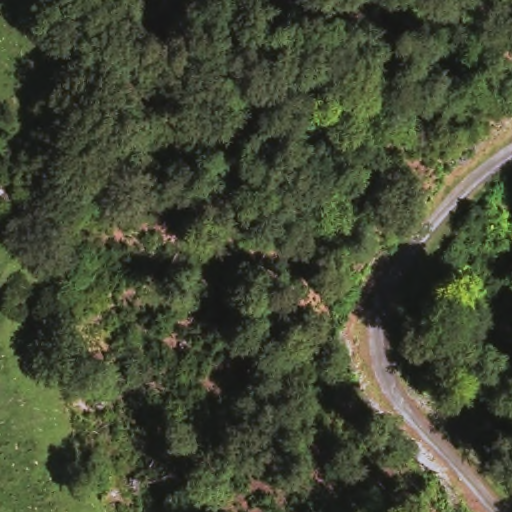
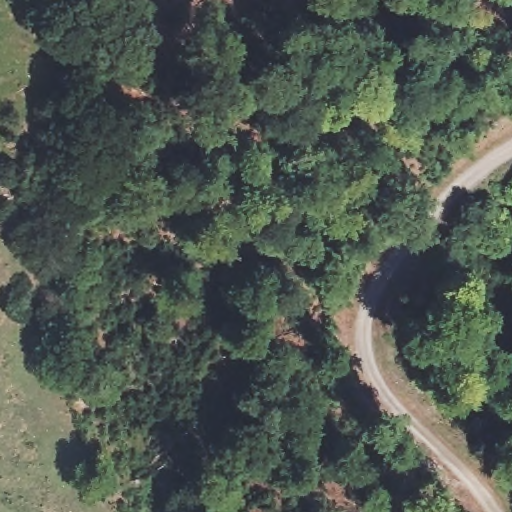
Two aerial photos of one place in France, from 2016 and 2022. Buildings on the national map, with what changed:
unchanged [(18,184),(15,202),(15,212),(0,210),(0,182),(18,184)]

